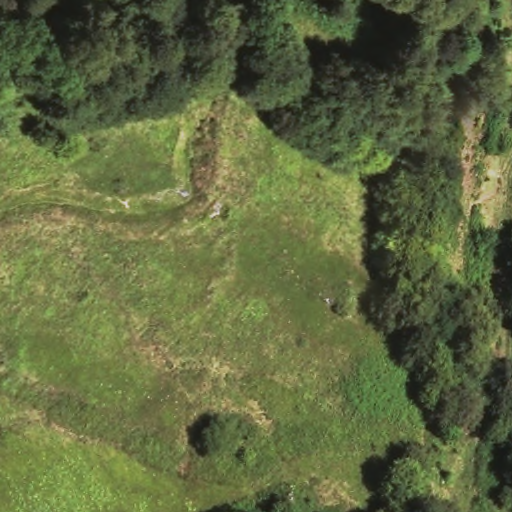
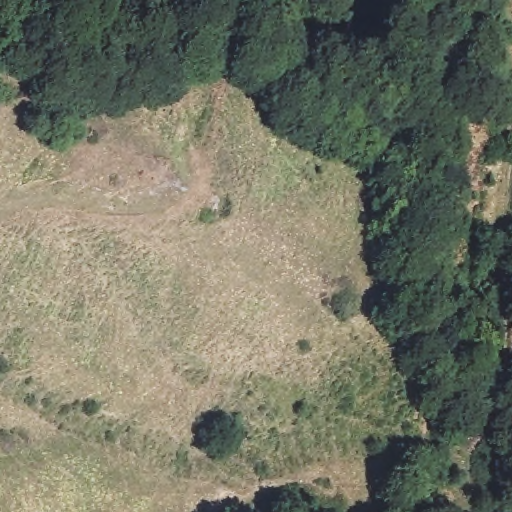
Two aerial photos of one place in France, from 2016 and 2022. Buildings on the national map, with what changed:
unchanged [(295,512),(263,512),(263,499),(294,501),(295,512)]

